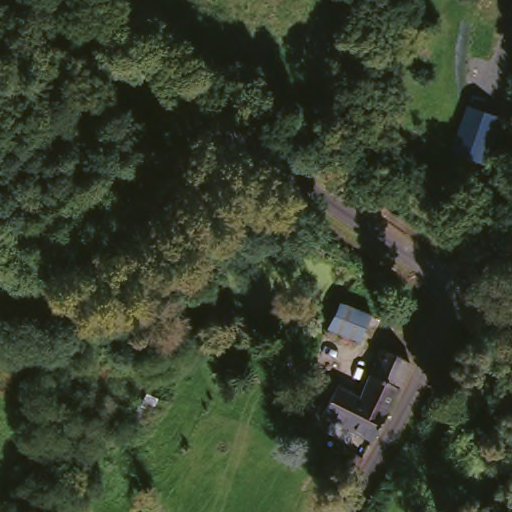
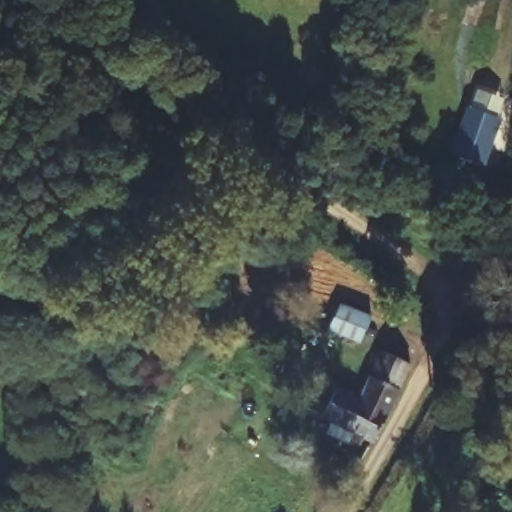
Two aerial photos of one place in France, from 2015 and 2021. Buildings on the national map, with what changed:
unchanged [(479,158),(451,149),(474,85),(501,100),(479,158)]
unchanged [(333,330),(346,305),(376,320),(363,345),(333,330)]
unchanged [(391,403),(364,388),(383,350),(410,366),(391,403)]
unchanged [(329,428),(335,417),(326,412),(341,386),(359,396),(364,388),(391,403),(372,440),(357,430),(351,441),(329,428)]

